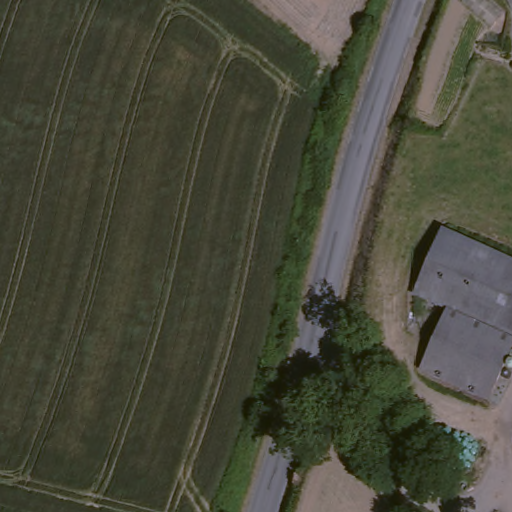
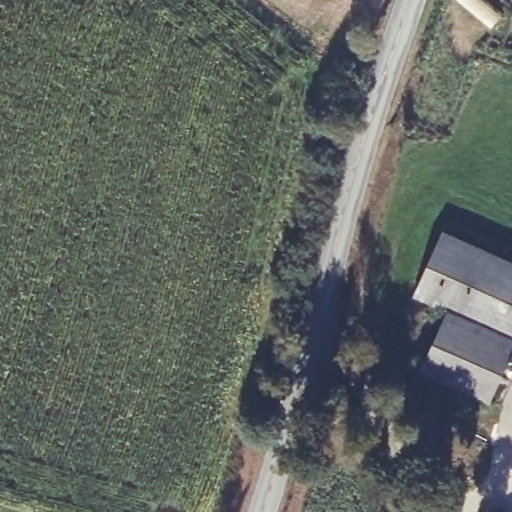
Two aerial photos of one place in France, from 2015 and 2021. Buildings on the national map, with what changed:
unchanged [(447,224),(512,255),(512,332),(455,304),(418,287),(447,224)]
unchanged [(512,332),(512,356),(493,396),(427,361),(455,304),(512,332)]

